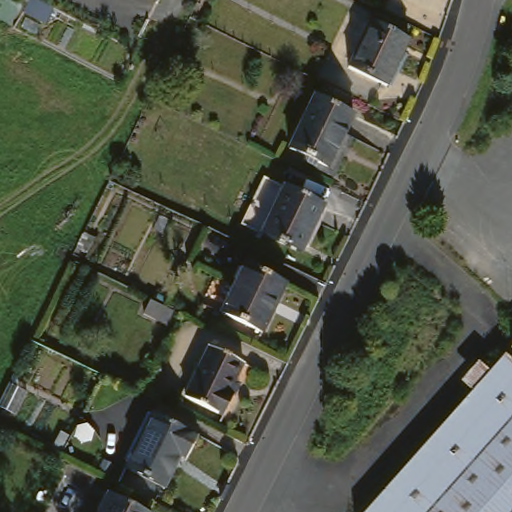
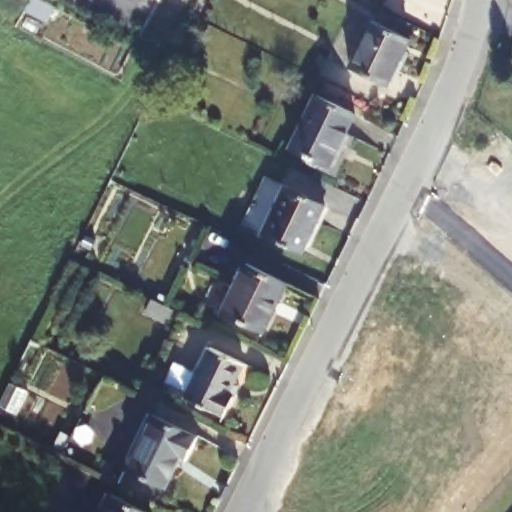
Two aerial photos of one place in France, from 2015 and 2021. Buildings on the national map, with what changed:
unchanged [(372,22),(410,42),(388,86),(350,66),(372,22)]
unchanged [(285,149),(310,97),(347,115),(339,133),(350,138),(333,172),(285,149)]
unchanged [(336,211),(311,256),(255,225),(278,180),(336,211)]
unchanged [(256,339),(215,318),(242,265),(283,286),(256,339)]
demolished [(471,394),(458,383),(475,362),(488,370),(512,347),(512,512),(364,512),(471,394)]
unchanged [(179,401),(204,350),(236,367),(229,381),(235,384),(217,420),(179,401)]
unchanged [(155,415),(202,439),(191,460),(184,456),(162,499),(122,480),(155,415)]
unchanged [(106,496),(138,512),(99,512),(106,496)]

